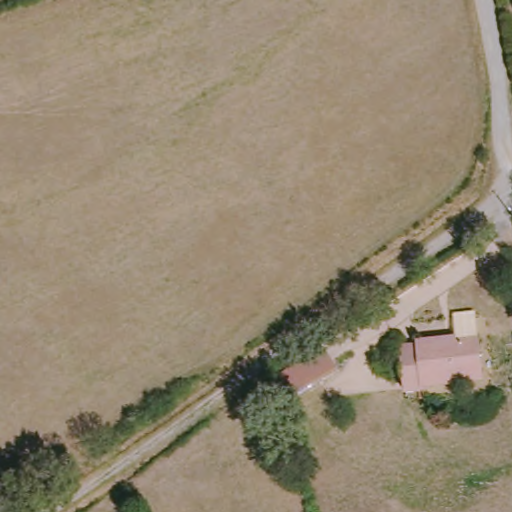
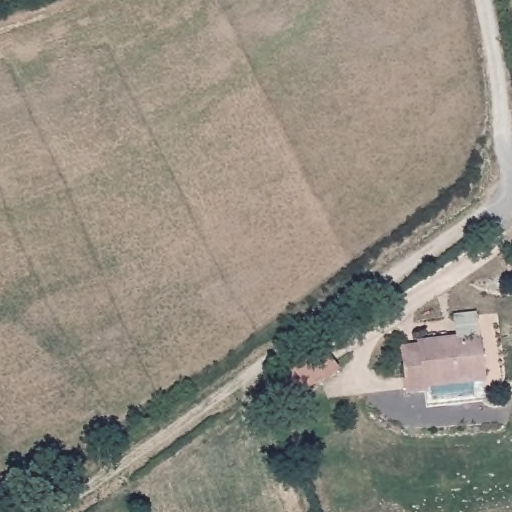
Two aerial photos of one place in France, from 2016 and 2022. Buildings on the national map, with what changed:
unchanged [(396,345),(420,342),(461,336),(460,315),(476,312),(480,334),(488,377),(423,387),(424,391),(402,396),(396,345)]
unchanged [(303,394),(282,407),(278,395),(275,383),(334,347),(343,361),(346,367),(303,394)]

